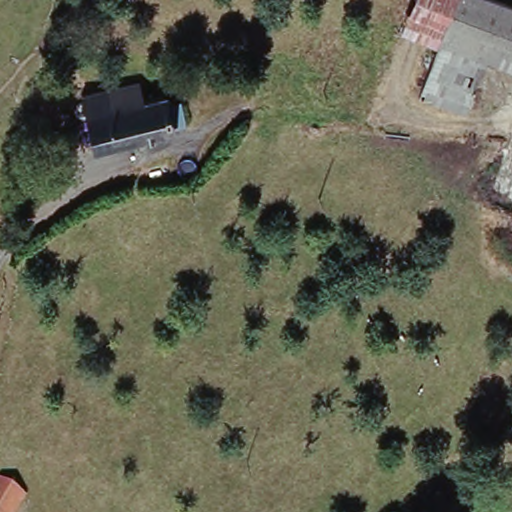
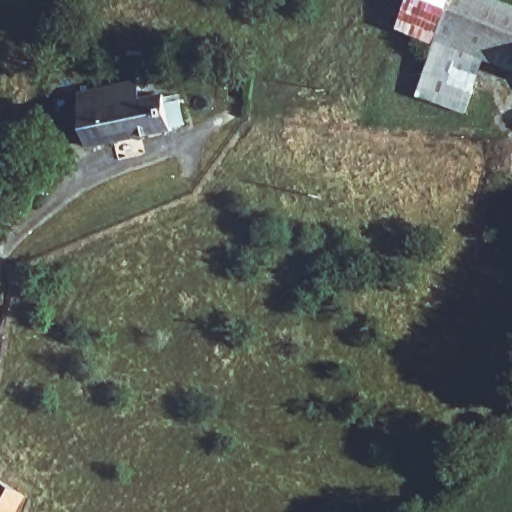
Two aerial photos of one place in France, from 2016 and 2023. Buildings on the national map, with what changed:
unchanged [(512,0),(512,72),(487,63),(466,111),(421,95),(439,45),(400,29),(412,0),(512,0)]
unchanged [(193,126),(94,145),(84,90),(142,78),(145,94),(169,89),(171,106),(189,104),(193,126)]
unchanged [(0,487),(21,500),(13,512),(0,512),(0,487)]

